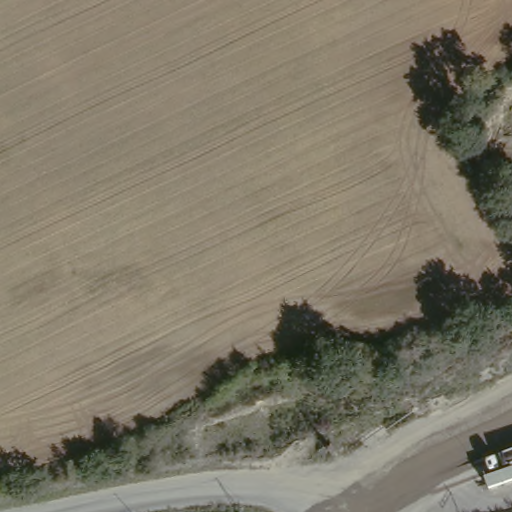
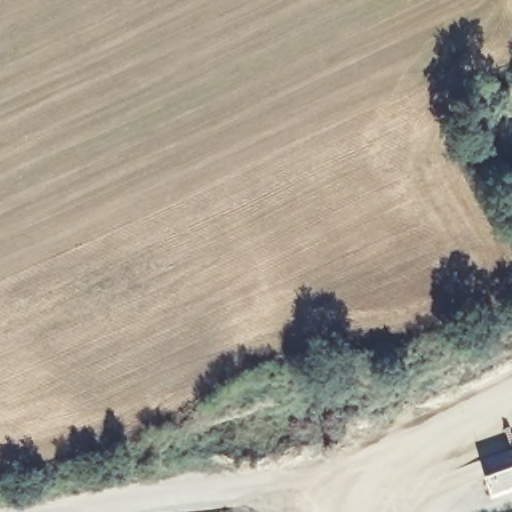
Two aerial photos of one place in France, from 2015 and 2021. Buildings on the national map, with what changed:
unchanged [(490,481),(512,474),(512,486),(493,492),(490,481)]

